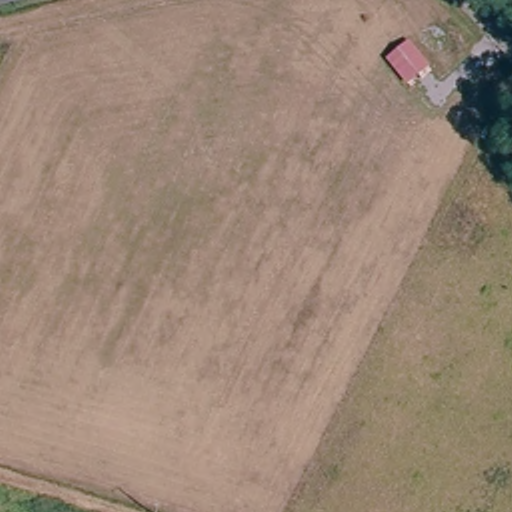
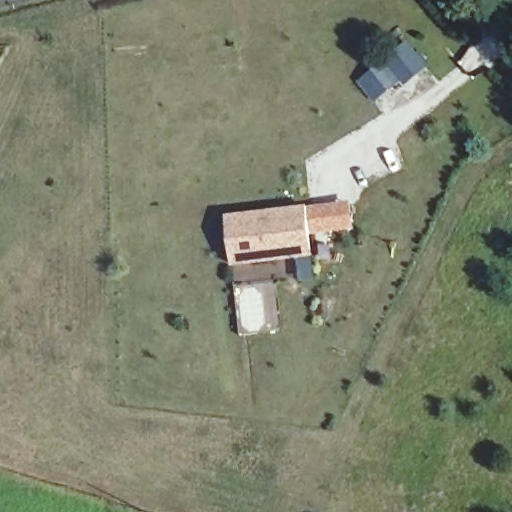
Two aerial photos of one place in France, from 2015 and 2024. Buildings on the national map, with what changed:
unchanged [(430,65),(406,86),(383,59),(409,38),(430,65)]
new [(310,205),(316,256),(236,266),(228,214),(310,205)]

